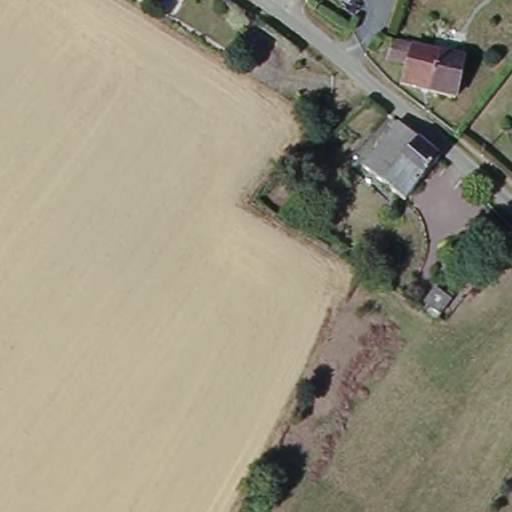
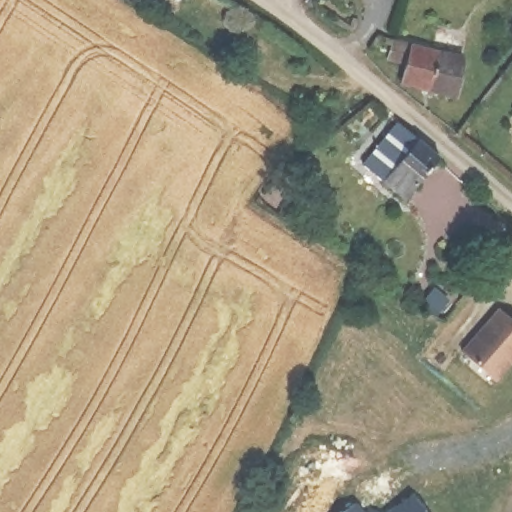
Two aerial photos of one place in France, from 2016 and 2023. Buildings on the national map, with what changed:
unchanged [(144,0),(142,2),(138,0),(144,0)]
unchanged [(402,72),(387,70),(392,50),(463,64),(454,104),(399,91),(402,72)]
unchanged [(394,202),(356,169),(394,125),(412,140),(433,160),(394,202)]
new [(512,351),(493,373),(465,349),(499,305),(512,316),(512,351)]
new [(415,497),(426,512),(396,512),(415,497)]
new [(361,512),(336,512),(353,499),(361,512)]

